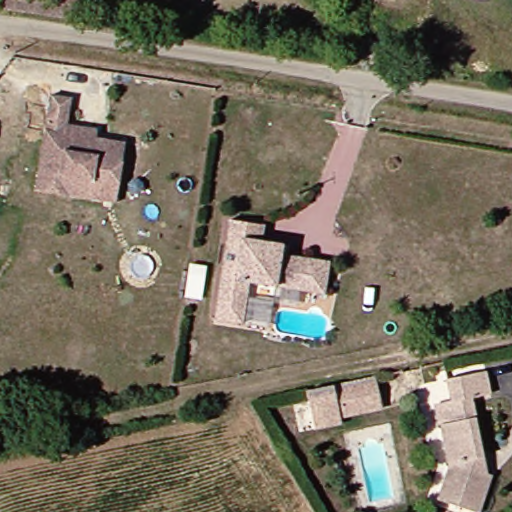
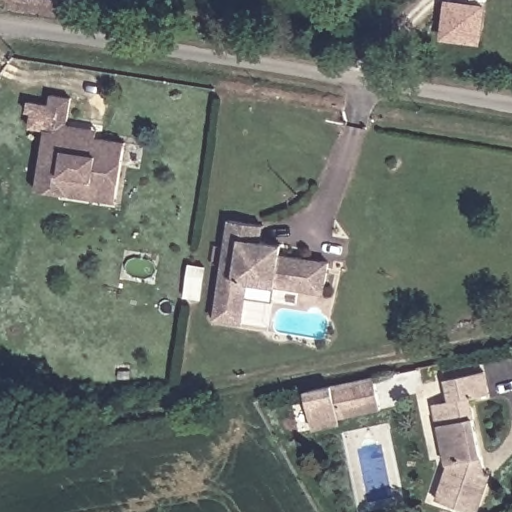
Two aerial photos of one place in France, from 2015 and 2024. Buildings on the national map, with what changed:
unchanged [(16,0),(17,12),(0,10),(0,0),(16,0)]
unchanged [(57,0),(78,0),(77,20),(55,17),(57,0)]
new [(453,0),(486,4),(480,45),(442,38),(449,0),(453,0)]
unchanged [(0,97),(0,87),(2,87),(0,97)]
unchanged [(65,199),(34,194),(48,102),(66,104),(64,128),(93,131),(92,143),(119,146),(112,189),(110,206),(65,199)]
unchanged [(266,223),(263,240),(268,240),(284,243),(282,253),(331,260),(326,292),(252,281),(245,322),(217,318),(226,265),(229,246),(232,218),(266,223)]
unchanged [(484,483),(475,512),(444,512),(429,507),(441,470),(432,432),(427,411),(442,409),(437,386),(475,377),(481,399),(462,403),(473,458),(477,479),(484,483)]
unchanged [(333,410),(347,407),(346,387),(372,382),(377,414),(335,422),(333,410)]
unchanged [(346,387),(347,407),(333,410),(335,422),(337,431),(308,436),(301,396),(346,387)]

